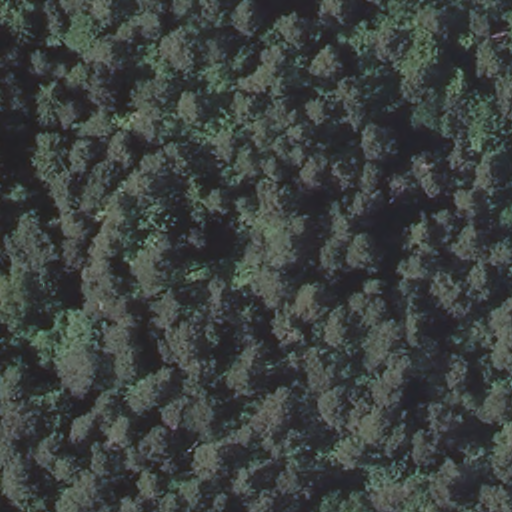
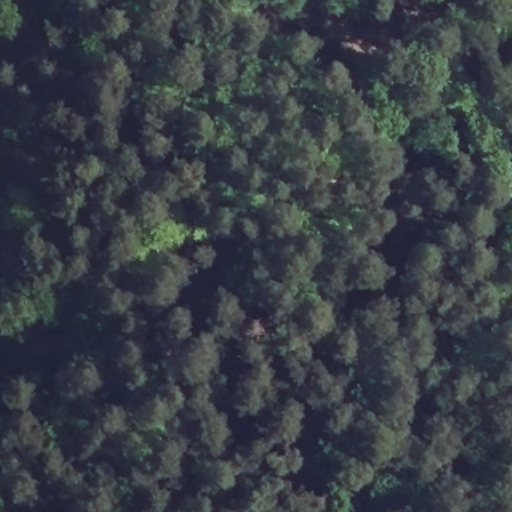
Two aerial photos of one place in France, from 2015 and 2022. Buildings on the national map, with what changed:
[]

